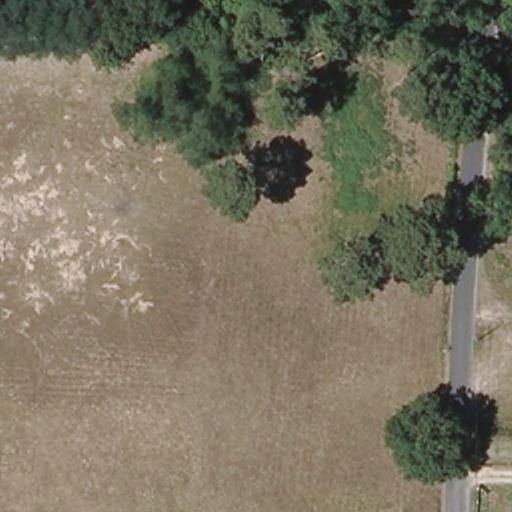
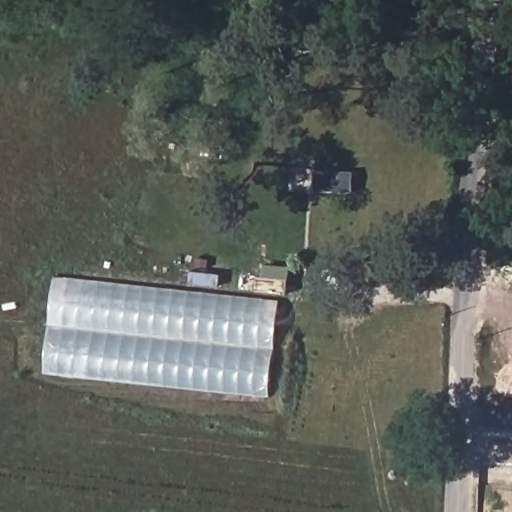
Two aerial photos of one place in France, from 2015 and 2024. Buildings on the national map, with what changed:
new [(256,291),(259,266),(291,269),(288,295),(256,291)]
new [(54,275),(278,301),(268,397),(44,373),(54,275)]

